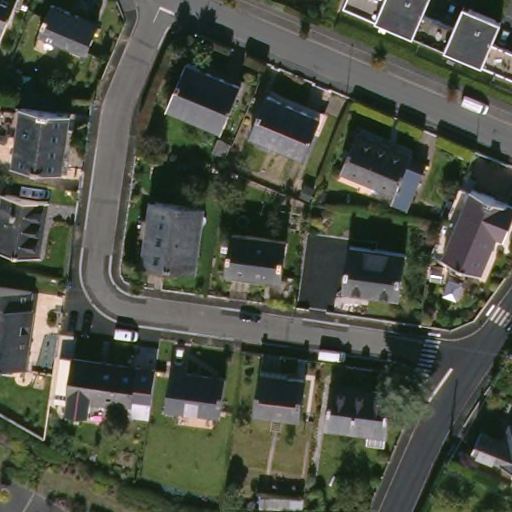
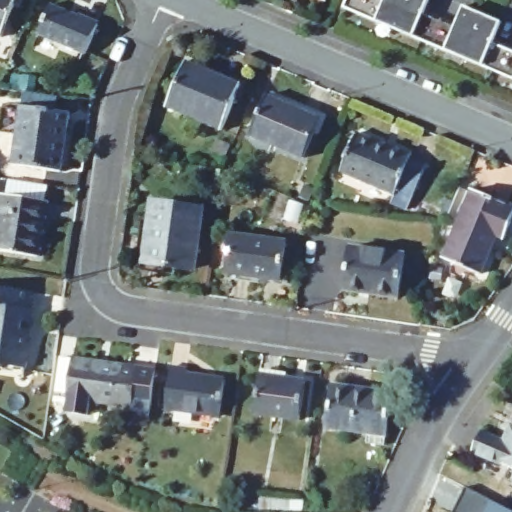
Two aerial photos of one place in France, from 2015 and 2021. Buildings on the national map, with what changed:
unchanged [(0,31),(0,0),(28,0),(12,36),(0,31)]
unchanged [(356,8),(359,0),(401,0),(402,0),(440,0),(434,14),(471,30),(480,9),(512,23),(503,44),(512,47),(512,75),(356,8)]
unchanged [(109,24),(96,52),(50,30),(63,3),(109,24)]
unchanged [(251,86),(231,131),(177,106),(197,61),(251,86)]
unchanged [(329,119),(311,158),(258,134),(276,94),(329,119)]
unchanged [(81,112),(72,171),(24,164),(33,104),(81,112)]
unchanged [(423,151),(422,154),(438,161),(419,204),(403,197),(406,189),(353,165),(370,128),(423,151)]
unchanged [(512,203),(512,238),(511,240),(503,237),(487,275),(449,259),(479,189),(512,203)]
unchanged [(58,200),(55,219),(51,218),(46,254),(4,247),(14,193),(58,200)]
unchanged [(211,208),(201,269),(153,260),(159,225),(161,225),(165,200),(211,208)]
unchanged [(288,281),(235,272),(241,234),(253,235),(255,223),(278,226),(276,239),(294,243),(288,281)]
unchanged [(412,254),(405,298),(375,293),(375,290),(352,287),(358,245),(412,254)]
unchanged [(39,307),(43,307),(34,366),(0,361),(0,283),(41,289),(39,307)]
unchanged [(145,367),(138,406),(76,395),(83,357),(145,367)]
unchanged [(195,368),(195,374),(232,379),(226,417),(174,409),(180,366),(195,368)]
unchanged [(318,375),(312,417),(266,411),(271,369),(318,375)]
unchanged [(377,434),(379,425),(337,419),(344,378),(380,384),(381,379),(404,383),(397,426),(396,437),(377,434)]
unchanged [(483,447),(491,428),(512,438),(512,460),(483,447)]
new [(464,488),(511,512),(452,512),(464,488)]

